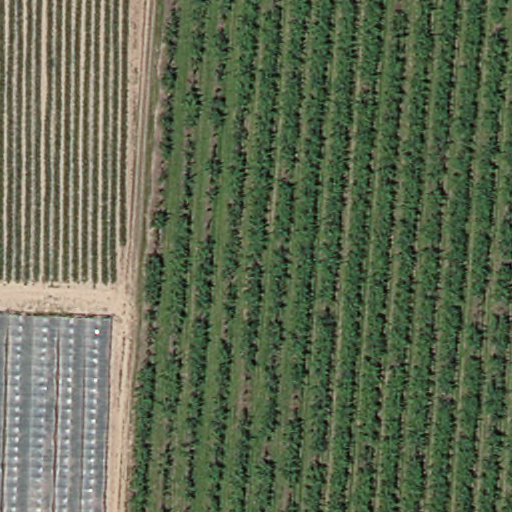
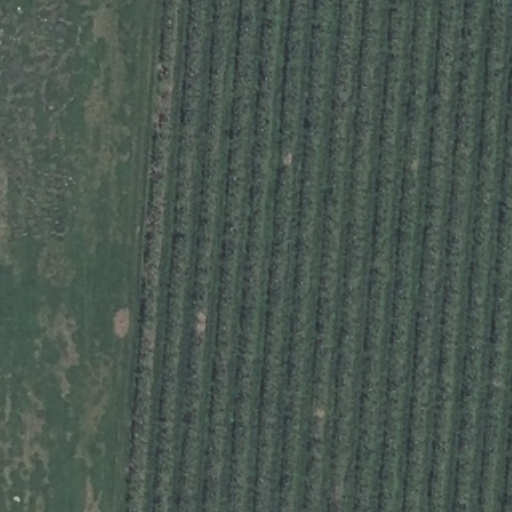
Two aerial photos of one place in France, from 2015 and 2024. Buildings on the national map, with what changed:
demolished [(106,319),(102,512),(0,512),(0,317),(106,319)]

